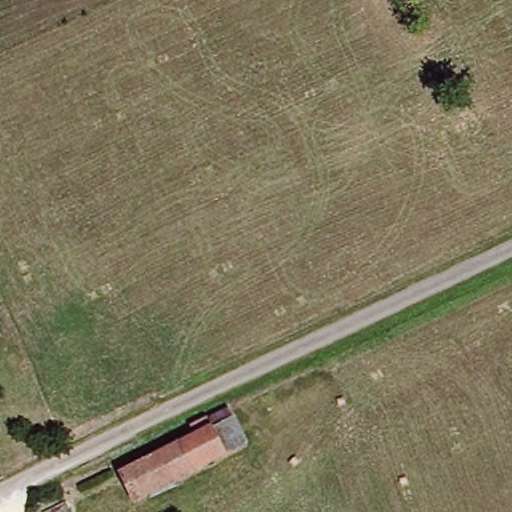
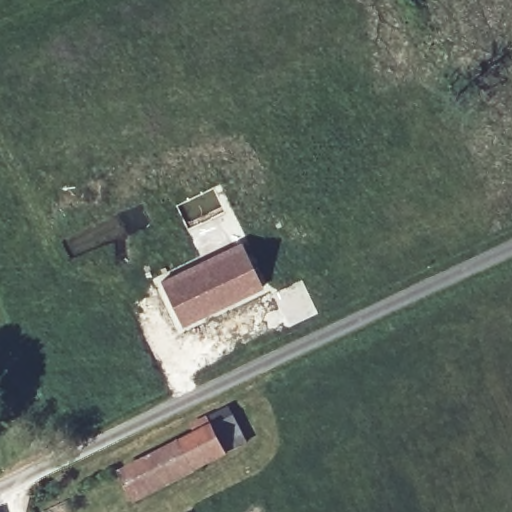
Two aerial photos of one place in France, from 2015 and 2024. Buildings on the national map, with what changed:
new [(239,241),(262,288),(180,328),(157,278),(239,241)]
unchanged [(244,414),(255,442),(232,456),(139,503),(123,470),(218,424),(244,414)]

